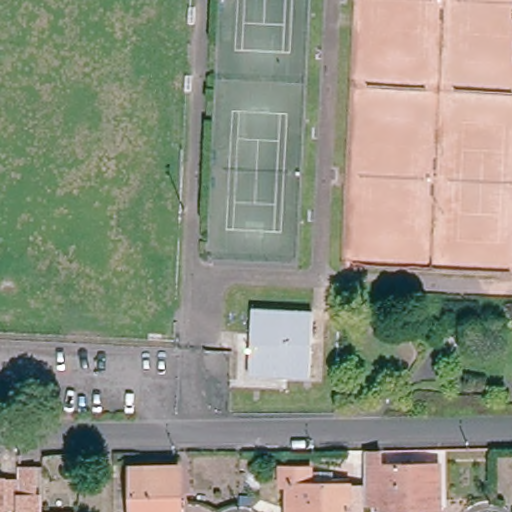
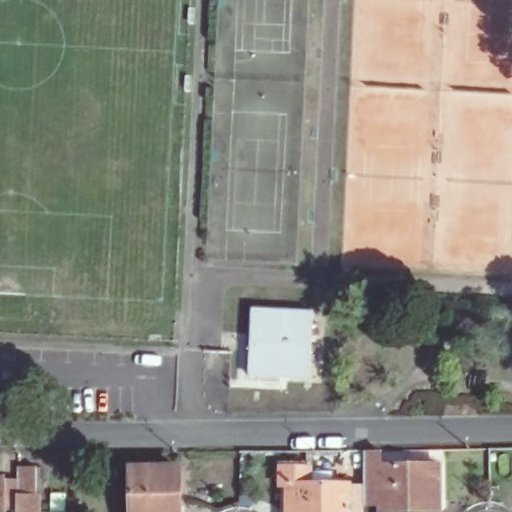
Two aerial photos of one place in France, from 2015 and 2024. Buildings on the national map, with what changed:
unchanged [(315,308),(313,375),(252,373),(255,305),(315,308)]
unchanged [(383,449),(383,465),(441,464),(443,509),(423,509),(421,502),(385,502),(383,476),(367,475),(368,450),(383,449)]
unchanged [(311,467),(312,483),(351,483),(352,512),(292,512),(291,485),(284,485),(284,467),(311,467)]
unchanged [(22,470),(40,470),(41,512),(24,512),(23,482),(22,470)]
unchanged [(181,470),(182,512),(135,512),(133,471),(181,470)]
unchanged [(23,482),(24,512),(0,512),(0,482),(23,482)]

